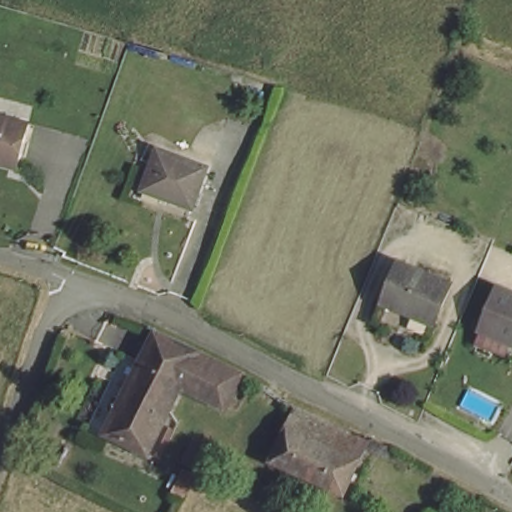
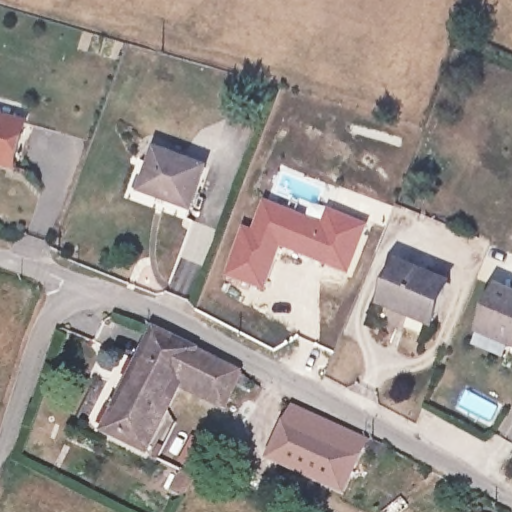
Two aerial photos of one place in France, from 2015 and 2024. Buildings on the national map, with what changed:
unchanged [(30,126),(22,158),(0,154),(0,120),(30,126)]
unchanged [(160,146),(210,161),(191,214),(141,197),(160,146)]
new [(246,223),(255,227),(266,199),(322,220),(327,206),(367,223),(348,274),(281,247),(263,289),(223,274),(246,223)]
unchanged [(379,303),(399,259),(454,282),(433,324),(379,303)]
unchanged [(475,330),(495,284),(512,291),(512,344),(507,342),(475,330)]
unchanged [(147,458),(99,438),(147,336),(193,356),(175,396),(147,458)]
unchanged [(193,356),(242,379),(226,416),(185,400),(175,396),(193,356)]
unchanged [(351,494),(264,461),(284,408),(372,442),(351,494)]
unchanged [(208,474),(192,468),(206,443),(225,451),(213,477),(208,474)]

